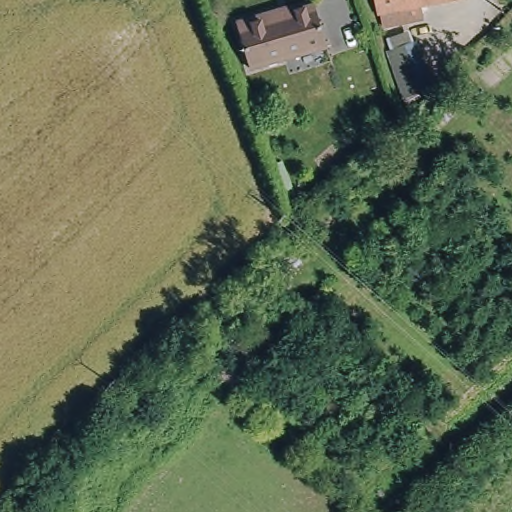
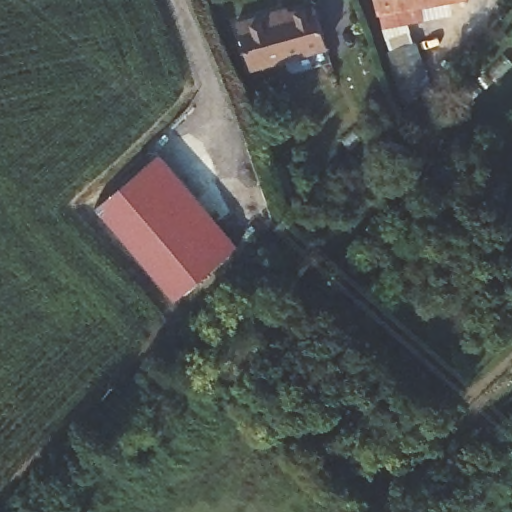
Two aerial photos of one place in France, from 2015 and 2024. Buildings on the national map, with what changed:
unchanged [(373,0),(463,0),(378,19),(373,0)]
unchanged [(325,46),(251,64),(240,18),(277,9),(278,14),(314,5),(325,46)]
unchanged [(429,83),(401,99),(381,48),(416,36),(429,83)]
new [(237,242),(173,298),(94,207),(158,152),(237,242)]

